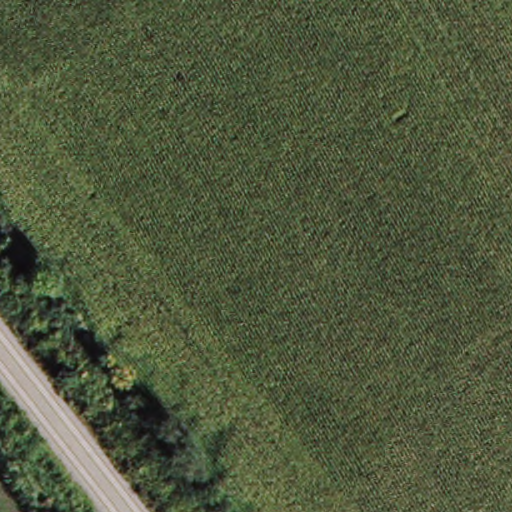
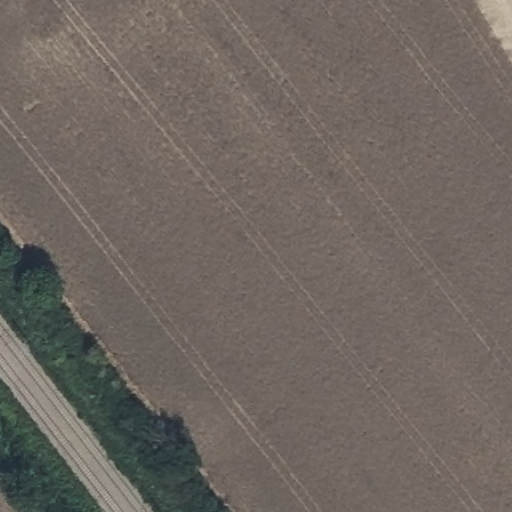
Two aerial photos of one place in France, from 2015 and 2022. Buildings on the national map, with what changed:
[]

